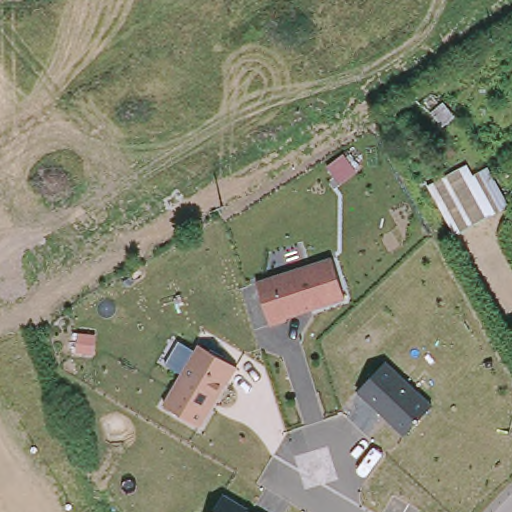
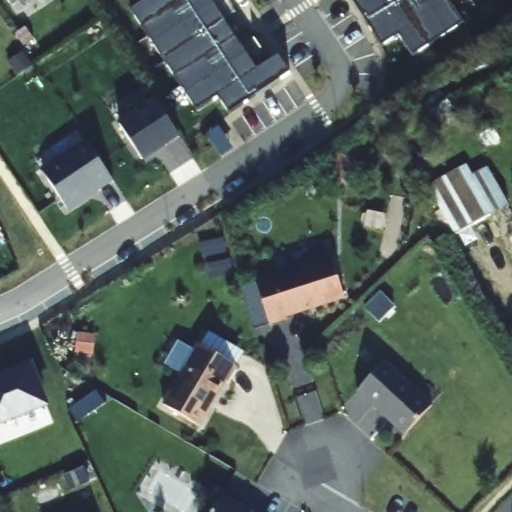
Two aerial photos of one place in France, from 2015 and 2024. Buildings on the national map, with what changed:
new [(20,0),(24,0),(21,2),(20,0)]
new [(220,0),(266,68),(285,54),(296,71),(238,106),(225,92),(208,105),(140,7),(151,0),(220,0)]
new [(422,48),(409,30),(391,42),(362,0),(460,0),(471,17),(422,48)]
new [(166,96),(186,132),(150,154),(130,121),(166,96)]
new [(95,138),(121,173),(76,203),(53,168),(95,138)]
unchanged [(428,188),(466,165),(472,176),(488,167),(510,204),(454,235),(428,188)]
new [(7,225),(0,227),(0,209),(7,225)]
unchanged [(270,327),(256,282),(331,258),(345,300),(286,317),(288,322),(270,327)]
unchanged [(166,365),(179,342),(195,350),(198,345),(238,367),(237,368),(198,428),(162,405),(180,375),(166,365)]
new [(32,361),(50,406),(0,426),(0,374),(32,361)]
unchanged [(433,406),(403,437),(357,392),(387,361),(433,406)]
unchanged [(255,512),(212,512),(223,494),(255,512)]

